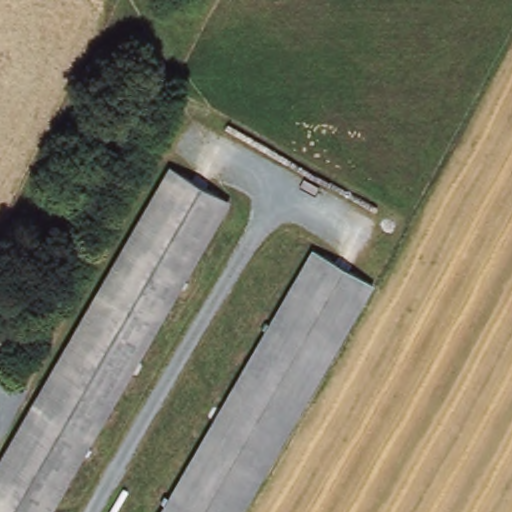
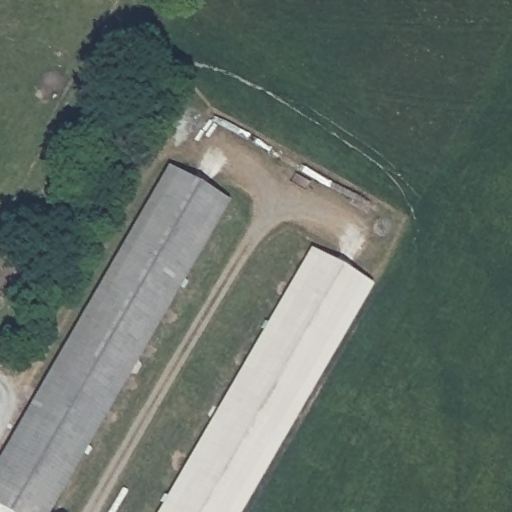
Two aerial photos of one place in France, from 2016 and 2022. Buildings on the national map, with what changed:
unchanged [(0,505),(0,457),(171,161),(228,195),(44,512),(11,512),(0,505)]
unchanged [(235,512),(158,512),(315,245),(371,278),(235,512)]

